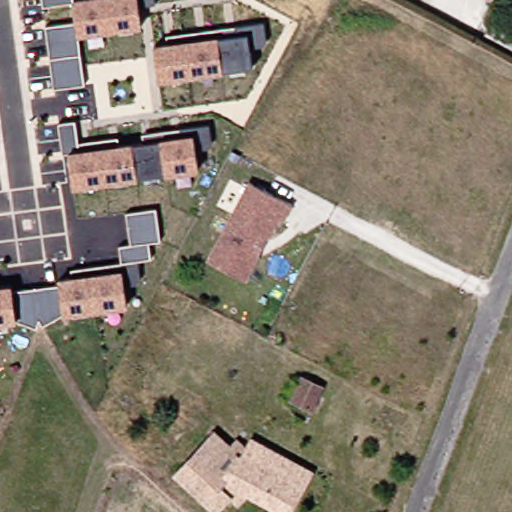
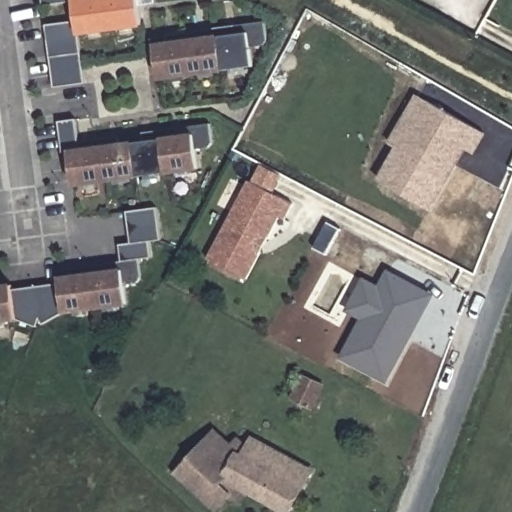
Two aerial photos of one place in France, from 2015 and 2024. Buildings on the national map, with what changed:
unchanged [(140,6),(142,25),(79,33),(85,84),(54,88),(46,25),(76,21),(74,1),(43,6),(42,0),(156,0),(156,4),(140,6)]
unchanged [(267,41),(264,46),(251,48),(254,66),(159,79),(154,45),(168,43),(166,35),(174,34),(186,32),(204,30),(265,21),(267,41)]
new [(391,143),(419,96),(432,104),(484,134),(472,154),(465,149),(454,166),(429,210),(364,172),(383,139),(391,143)]
unchanged [(213,143),(209,148),(197,150),(199,169),(74,186),(69,152),(63,153),(59,121),(76,119),(79,141),(89,141),(112,137),(119,136),(120,145),(145,141),(143,133),(150,132),(173,129),(180,128),(210,124),(213,143)]
unchanged [(249,181),(293,204),(284,220),(279,217),(245,280),(207,260),(249,181)]
unchanged [(12,289),(59,282),(59,278),(72,276),(71,268),(78,267),(121,261),(119,244),(131,243),(126,211),(156,207),(161,240),(149,242),(151,258),(139,259),(141,278),(137,283),(125,284),(128,304),(63,312),(64,312),(43,324),(40,318),(36,326),(16,318),(0,320),(0,285),(11,284),(12,289)]
new [(361,319),(347,311),(364,278),(380,285),(389,269),(436,294),(388,384),(341,358),(361,319)]
unchanged [(322,387),(312,408),(292,399),(302,378),(322,387)]
unchanged [(231,497),(231,496),(216,512),(215,512),(175,475),(214,433),(226,443),(234,434),(247,446),(251,439),(311,471),(288,512),(284,512),(249,493),(239,504),(231,497)]

